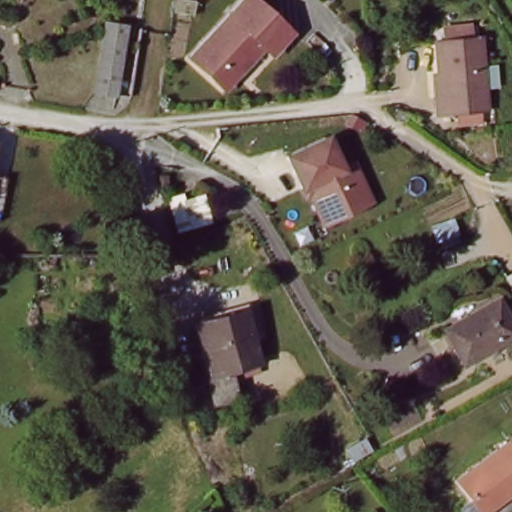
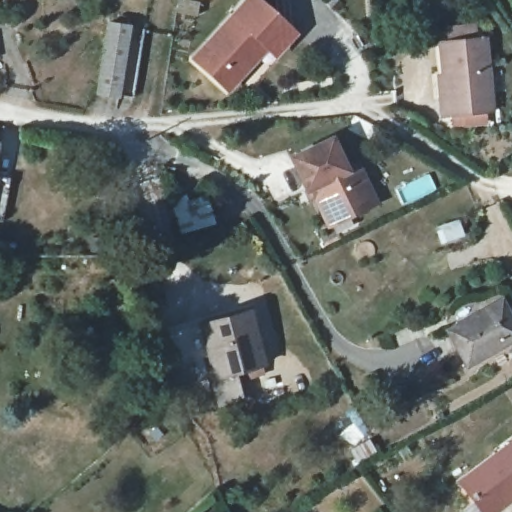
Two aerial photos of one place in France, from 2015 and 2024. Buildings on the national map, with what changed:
unchanged [(245,0),(252,0),(291,35),(274,56),(265,48),(226,89),(193,57),(245,0)]
unchanged [(120,95),(96,91),(107,23),(131,26),(120,95)]
unchanged [(487,34),(491,107),(443,116),(442,98),(450,95),(447,41),(487,34)]
unchanged [(331,135),(349,165),(363,159),(385,200),(329,227),(316,202),(309,205),(286,155),(331,135)]
unchanged [(0,224),(0,179),(11,182),(3,224),(0,224)]
unchanged [(205,194),(211,228),(181,238),(175,205),(205,194)]
unchanged [(461,370),(445,340),(512,297),(512,340),(461,370)]
unchanged [(260,363),(213,379),(198,327),(246,313),(260,363)]
unchanged [(459,482),(512,433),(512,487),(481,511),(459,482)]

